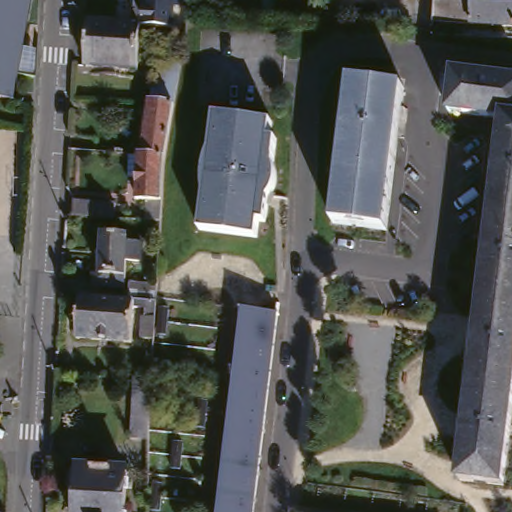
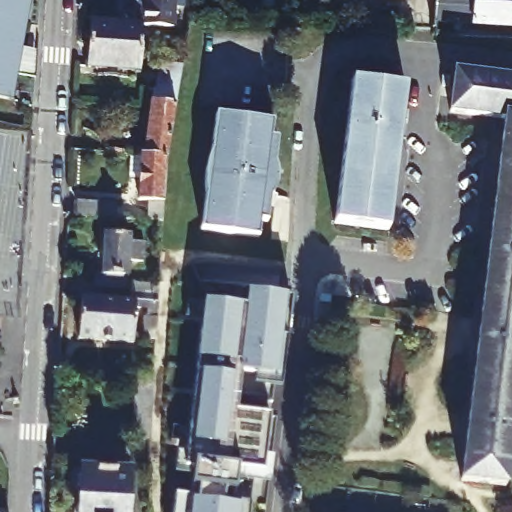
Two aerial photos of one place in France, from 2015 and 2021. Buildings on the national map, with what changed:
unchanged [(0,96),(0,0),(25,0),(9,97),(0,96)]
unchanged [(31,0),(13,98),(9,97),(25,0),(31,0)]
new [(174,8),(173,29),(139,27),(133,26),(135,0),(193,0),(192,10),(174,8)]
unchanged [(432,21),(433,0),(512,0),(512,28),(476,26),(432,21)]
unchanged [(139,27),(136,72),(85,68),(88,22),(139,27)]
new [(145,109),(137,106),(139,87),(152,89),(156,58),(179,63),(169,102),(146,100),(145,109)]
unchanged [(453,482),(498,121),(443,112),(449,72),(512,80),(512,369),(497,488),(453,482)]
unchanged [(401,85),(385,227),(332,221),(349,79),(401,85)]
unchanged [(146,100),(169,102),(160,155),(140,153),(146,100)]
unchanged [(201,200),(200,194),(200,189),(200,184),(200,179),(201,175),(202,170),(203,165),(205,159),(206,154),(211,118),(268,126),(266,142),(273,142),(269,167),(270,170),(272,173),(274,177),(274,179),(274,182),(273,186),(272,190),(270,194),(267,199),(265,200),(262,225),(256,225),(253,241),(196,234),(201,200)]
unchanged [(160,155),(157,198),(156,222),(141,221),(143,197),(133,195),(135,175),(124,174),(126,152),(136,152),(140,153),(160,155)]
unchanged [(96,206),(95,222),(68,219),(69,204),(96,206)]
unchanged [(131,241),(130,257),(116,256),(113,285),(95,283),(87,283),(83,277),(83,270),(90,271),(94,232),(118,235),(117,240),(131,241)]
unchanged [(65,336),(69,293),(117,298),(119,282),(147,284),(146,301),(123,298),(120,341),(65,336)]
new [(174,493),(189,495),(191,477),(173,473),(176,451),(186,453),(195,357),(203,297),(239,301),(240,287),(287,293),(277,376),(279,387),(267,385),(269,397),(238,392),(236,410),(267,415),(262,470),(262,482),(249,481),(248,502),(248,512),(172,512),(174,493)]
demolished [(276,311),(252,512),(217,512),(243,307),(276,311)]
unchanged [(146,317),(145,337),(129,336),(131,316),(146,317)]
unchanged [(147,385),(144,442),(125,441),(128,383),(147,385)]
unchanged [(126,470),(124,512),(76,512),(79,467),(126,470)]

